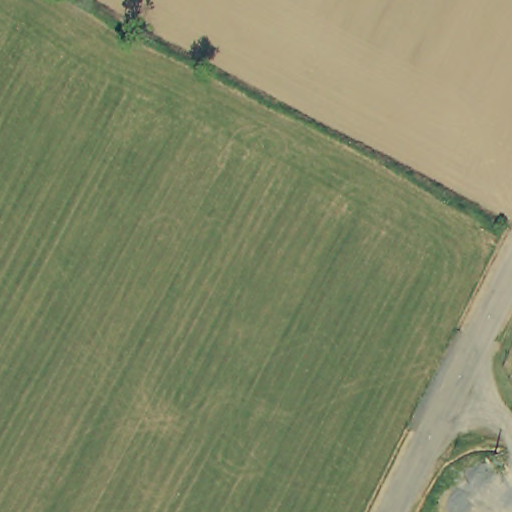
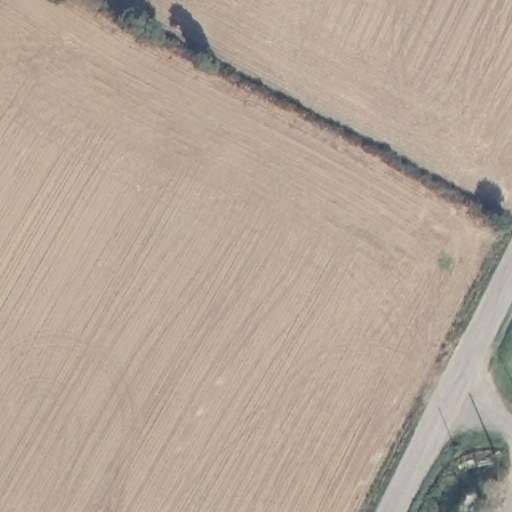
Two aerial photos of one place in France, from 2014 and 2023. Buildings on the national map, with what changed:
[]

